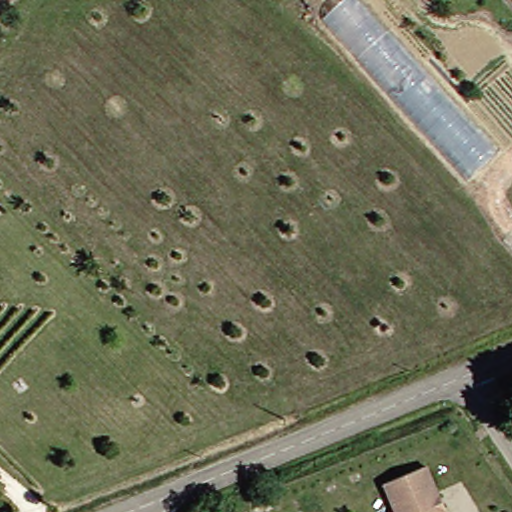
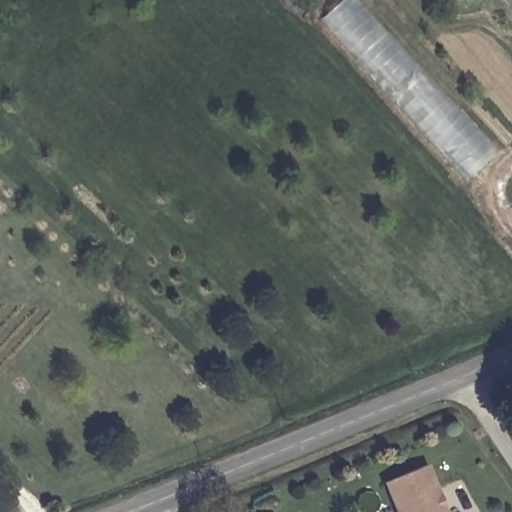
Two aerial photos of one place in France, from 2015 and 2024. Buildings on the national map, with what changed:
unchanged [(466,177),(323,18),(343,0),(358,0),(498,148),(466,177)]
unchanged [(430,502),(432,508),(437,509),(438,512),(390,512),(378,484),(419,468),(432,497),(430,502)]

